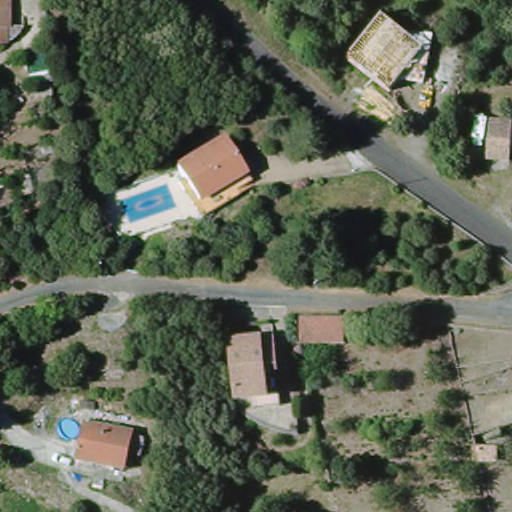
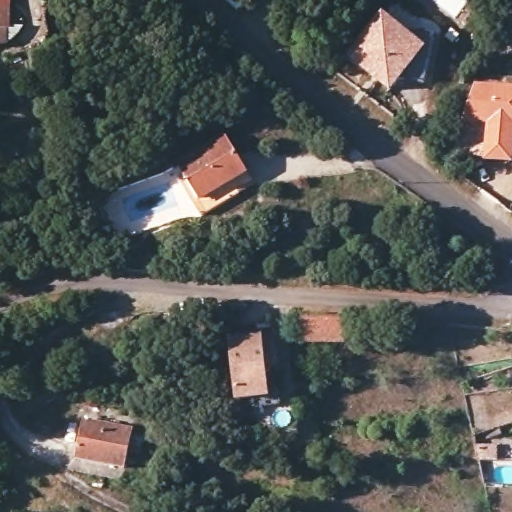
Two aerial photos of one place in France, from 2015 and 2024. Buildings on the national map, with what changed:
unchanged [(17,0),(17,16),(17,32),(2,33),(0,33),(0,0),(17,0)]
unchanged [(345,56),(382,12),(402,28),(433,37),(425,83),(402,80),(390,93),(345,56)]
new [(485,124),(463,123),(475,84),(512,88),(512,163),(485,161),(487,126),(485,124)]
demolished [(512,131),(512,159),(510,169),(489,162),(498,127),(512,131)]
unchanged [(210,214),(201,199),(182,167),(225,137),(245,171),(255,185),(210,214)]
unchanged [(346,349),(307,347),(303,319),(350,323),(350,349),(346,349)]
unchanged [(230,340),(278,338),(280,362),(232,363),(230,340)]
unchanged [(283,395),(242,398),(235,401),(232,363),(280,362),(283,395)]
unchanged [(76,456),(87,416),(135,426),(126,468),(76,456)]

